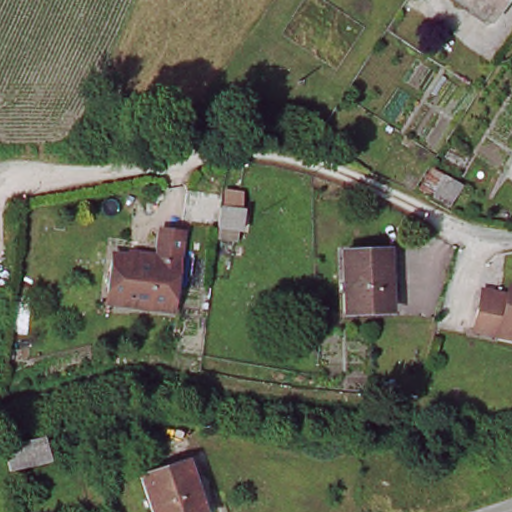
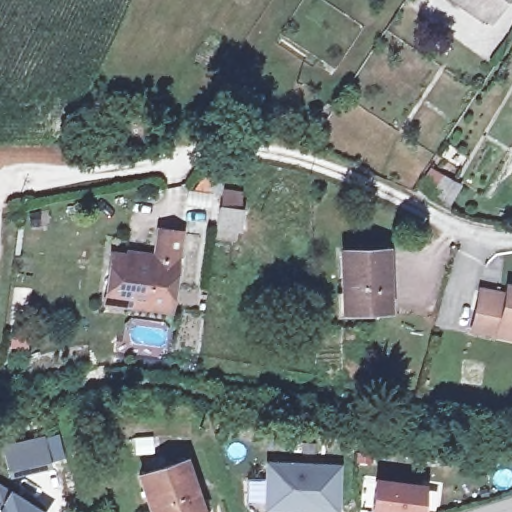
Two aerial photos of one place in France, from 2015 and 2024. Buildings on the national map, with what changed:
unchanged [(488,18),(462,0),(500,0),(488,18)]
unchanged [(459,190),(448,208),(419,191),(429,173),(459,190)]
unchanged [(214,236),(216,225),(218,206),(241,209),(238,228),(233,228),(232,238),(214,236)]
unchanged [(110,291),(115,252),(131,255),(132,250),(160,254),(163,228),(185,231),(176,308),(134,304),(109,300),(110,291)]
unchanged [(386,248),(388,308),(344,310),(341,250),(386,248)]
unchanged [(467,328),(474,289),(501,295),(503,285),(512,287),(512,338),(493,333),(467,328)]
unchanged [(42,437),(48,462),(8,470),(3,445),(42,437)]
unchanged [(150,512),(138,474),(183,460),(201,512),(150,512)]
new [(342,471),(340,512),(271,512),(273,469),(342,471)]
new [(407,512),(402,511),(401,512),(367,512),(371,477),(424,485),(418,512),(407,512)]
new [(0,512),(0,488),(38,512),(0,512)]

